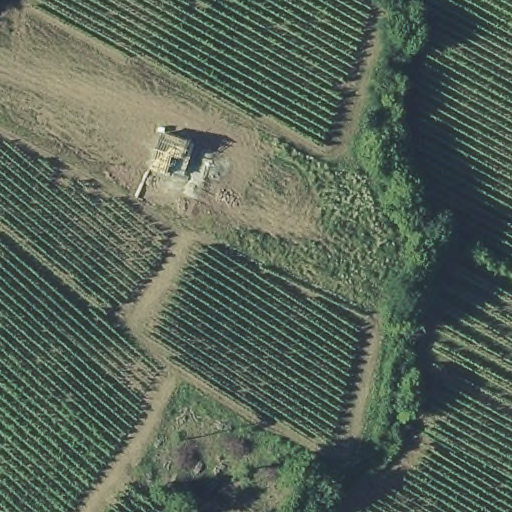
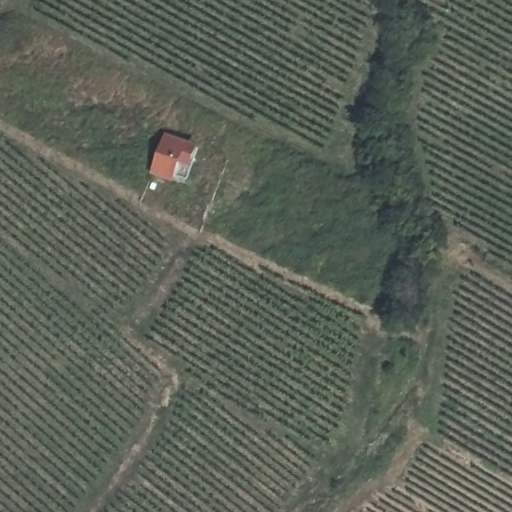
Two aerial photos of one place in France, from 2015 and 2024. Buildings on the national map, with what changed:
unchanged [(183,182),(152,174),(165,134),(195,141),(183,182)]

